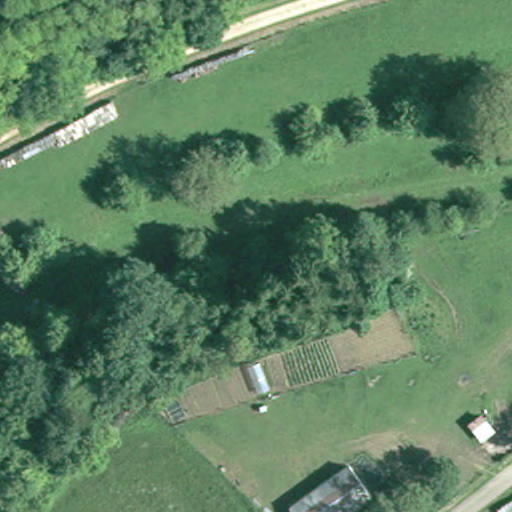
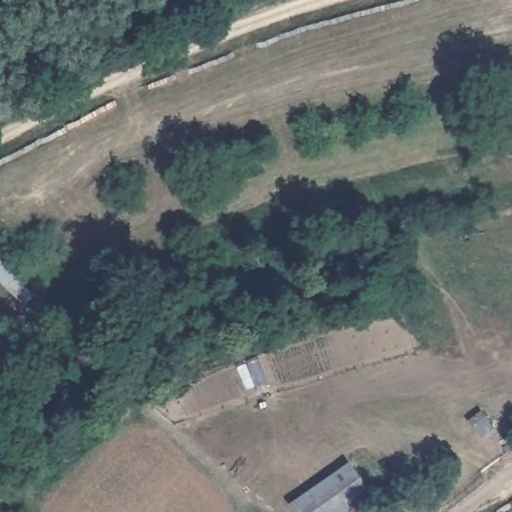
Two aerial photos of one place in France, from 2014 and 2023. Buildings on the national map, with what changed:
unchanged [(354,508),(356,512),(291,512),(285,505),(348,459),(372,495),(354,508)]

